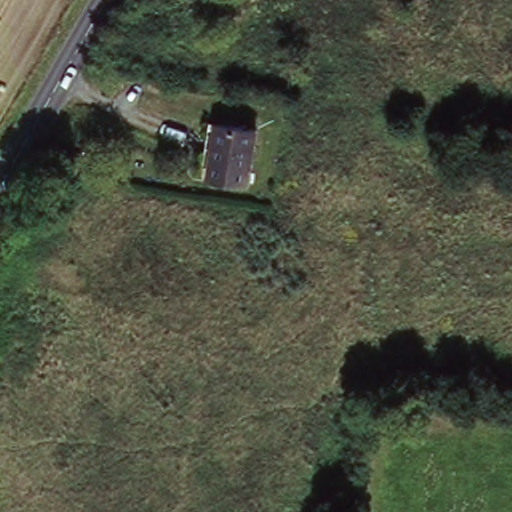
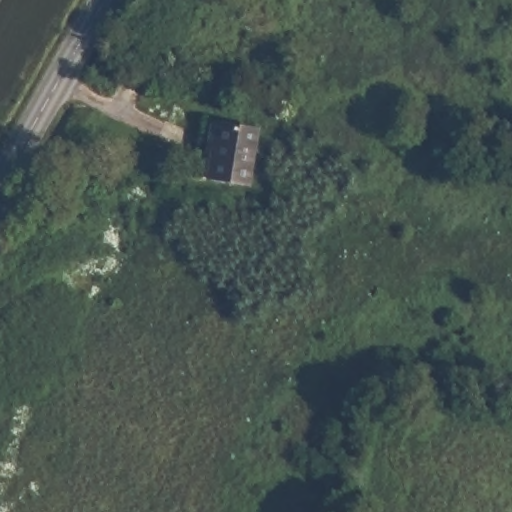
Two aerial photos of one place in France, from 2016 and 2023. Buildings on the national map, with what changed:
unchanged [(259,130),(250,184),(202,177),(210,124),(259,130)]

